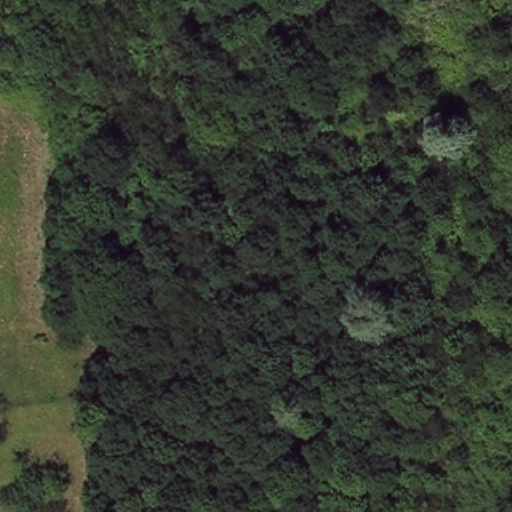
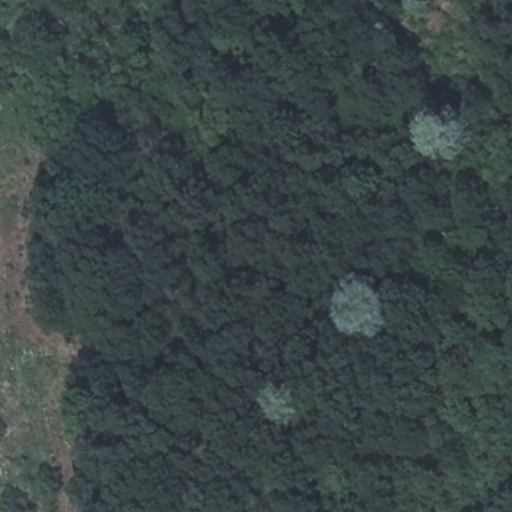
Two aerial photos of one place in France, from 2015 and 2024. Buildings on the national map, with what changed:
[]

